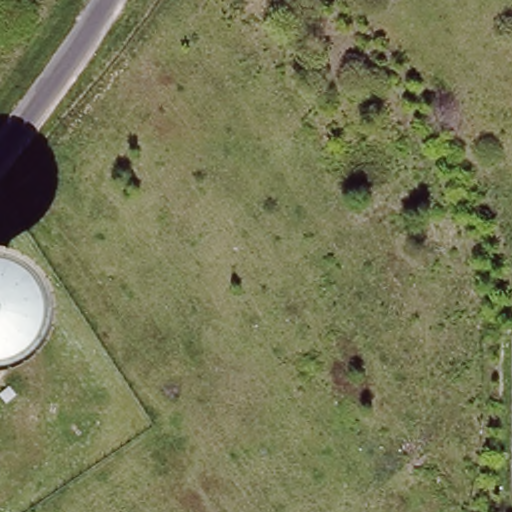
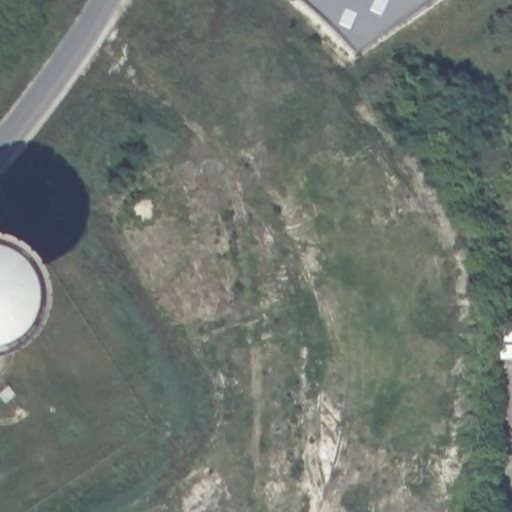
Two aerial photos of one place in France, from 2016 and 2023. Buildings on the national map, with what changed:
new [(358,54),(301,0),(437,0),(358,54)]

